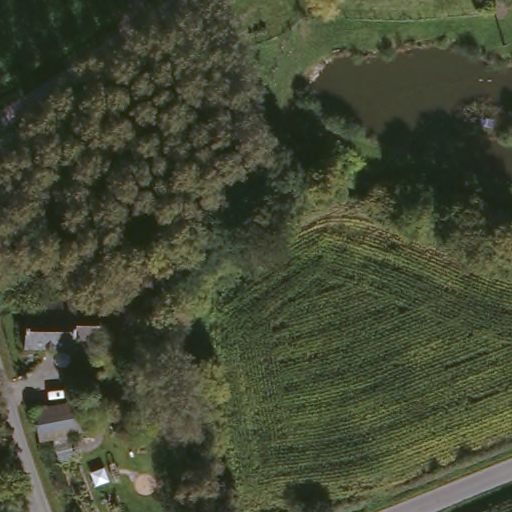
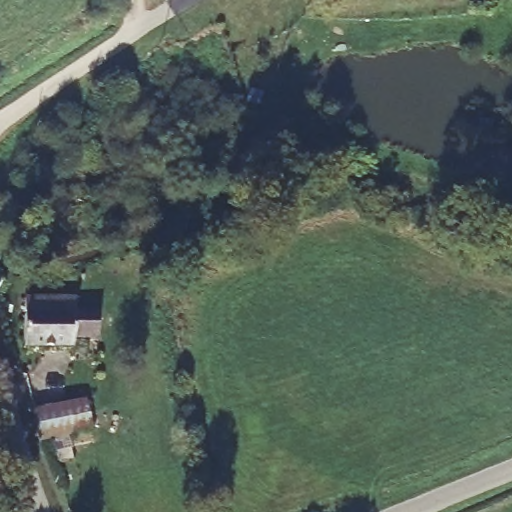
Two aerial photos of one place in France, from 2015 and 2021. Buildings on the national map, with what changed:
unchanged [(80,297),(81,314),(105,315),(105,344),(81,344),(81,351),(19,350),(21,313),(36,313),(37,296),(76,297),(80,297)]
unchanged [(96,428),(43,439),(38,410),(90,399),(96,428)]

